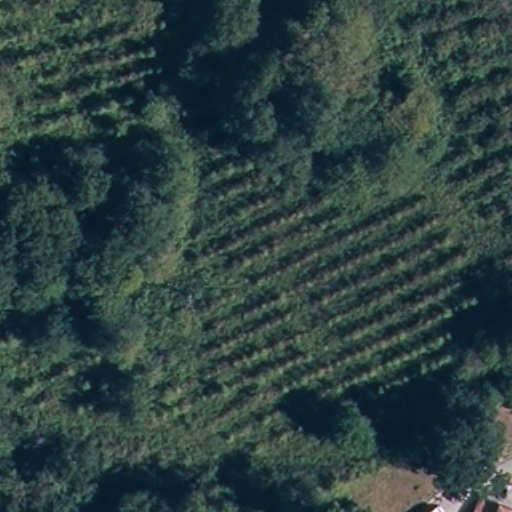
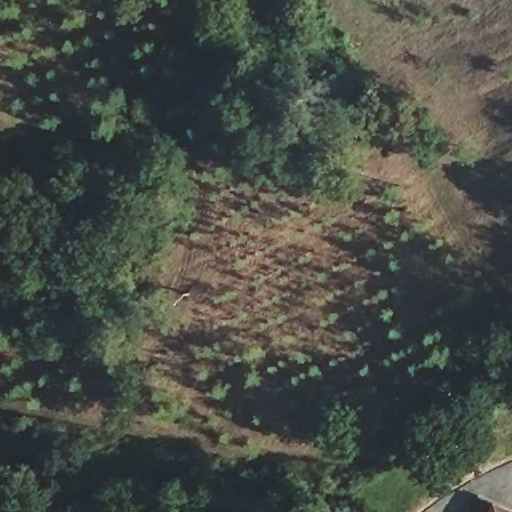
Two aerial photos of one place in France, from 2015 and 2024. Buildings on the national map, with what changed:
unchanged [(510,512),(481,512),(485,502),(510,512)]

